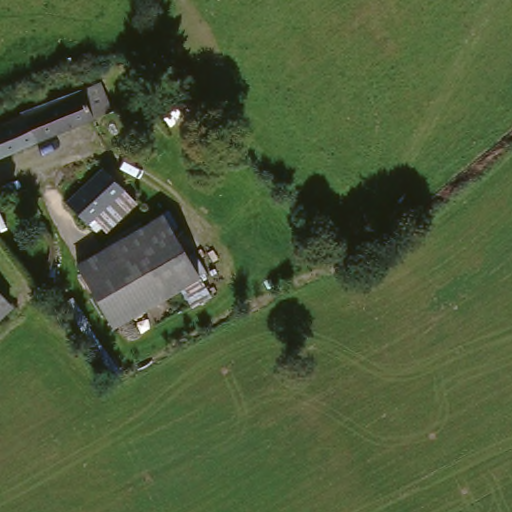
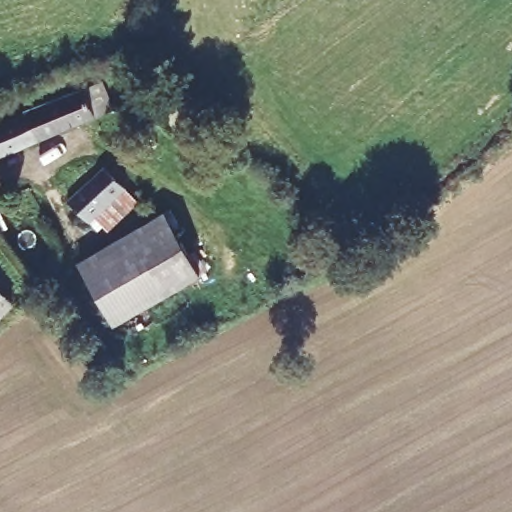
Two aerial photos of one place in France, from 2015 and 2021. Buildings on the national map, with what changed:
unchanged [(107,102),(118,98),(124,112),(0,161),(0,126),(101,88),(107,102)]
unchanged [(106,234),(96,219),(85,226),(70,201),(108,177),(123,201),(133,216),(106,234)]
unchanged [(77,266),(161,219),(190,272),(104,318),(77,266)]
unchanged [(0,317),(0,306),(5,311),(0,317)]

